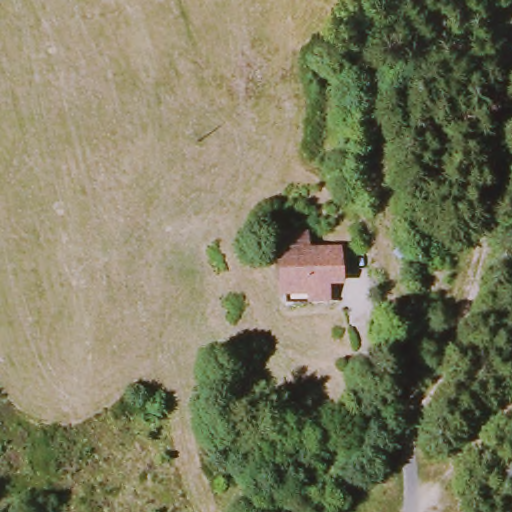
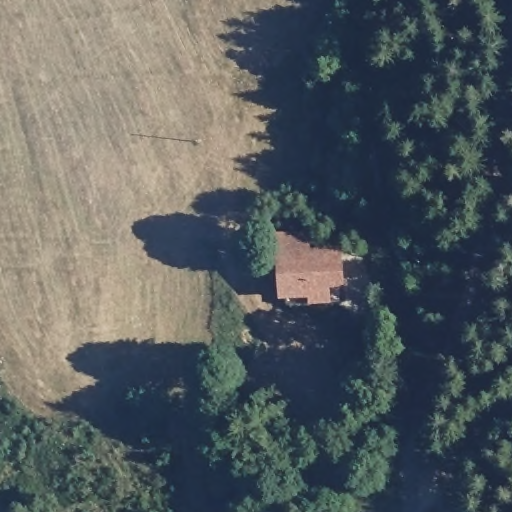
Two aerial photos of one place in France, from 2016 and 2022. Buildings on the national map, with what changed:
unchanged [(327,252),(328,300),(275,302),(273,247),(272,234),(296,233),(296,245),(296,253),(327,252)]

